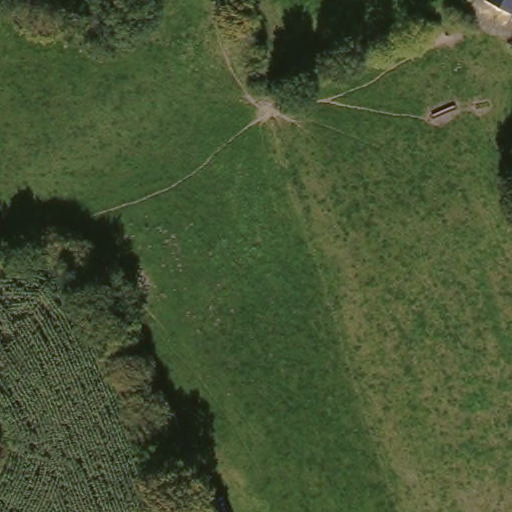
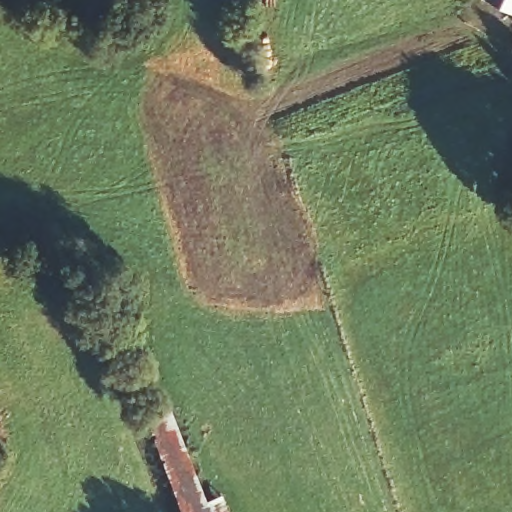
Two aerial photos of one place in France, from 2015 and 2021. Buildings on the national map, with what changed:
new [(172,409),(209,502),(224,496),(229,512),(180,512),(147,418),(172,409)]

